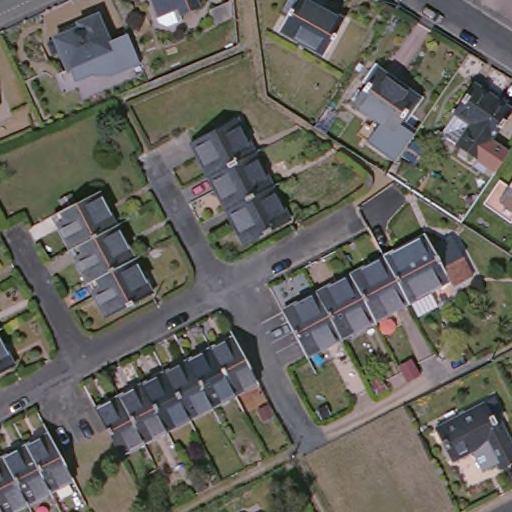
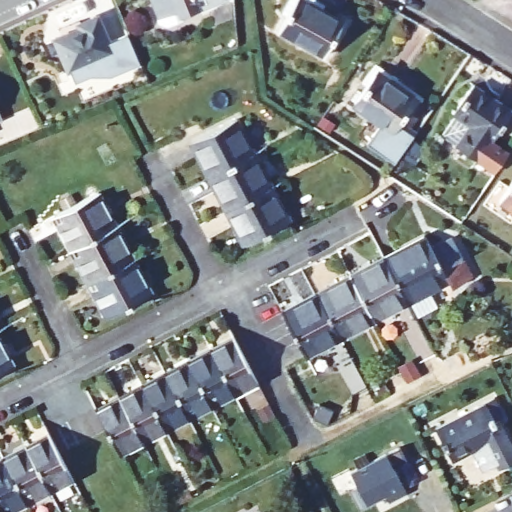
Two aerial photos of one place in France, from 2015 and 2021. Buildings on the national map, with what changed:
unchanged [(188,17),(190,25),(184,28),(175,31),(165,25),(164,20),(167,19),(159,0),(202,0),(206,11),(188,17)]
unchanged [(327,58),(281,33),(300,0),(303,0),(345,24),(327,58)]
unchanged [(114,54),(87,66),(90,74),(75,81),(62,53),(55,57),(50,46),(84,30),(82,26),(99,20),(114,54)]
unchanged [(418,102),(395,134),(357,107),(380,74),(418,102)]
unchanged [(490,143),(487,144),(473,163),(453,149),(466,130),(450,118),(470,88),(509,114),(490,143)]
unchanged [(239,124),(291,225),(254,245),(242,225),(235,227),(229,214),(235,211),(225,192),(218,195),(212,180),(217,177),(207,158),(200,161),(194,147),(239,124)]
unchanged [(502,204),(512,190),(512,212),(502,204)]
unchanged [(101,197),(152,298),(114,318),(104,298),(97,300),(90,286),(96,283),(86,266),(81,268),(73,253),(79,250),(68,232),(63,234),(56,220),(101,197)]
unchanged [(404,249),(407,256),(435,242),(455,279),(437,290),(445,304),(427,314),(419,300),(313,356),(305,341),(290,310),(404,249)]
unchanged [(121,448),(114,435),(102,412),(240,341),(257,377),(121,448)]
unchanged [(0,377),(0,342),(14,370),(0,377)]
unchanged [(494,420),(500,418),(512,443),(512,462),(500,468),(498,463),(485,470),(475,450),(454,460),(437,426),(485,402),(494,420)]
unchanged [(61,460),(69,474),(0,510),(0,464),(50,438),(52,443),(61,460)]
new [(398,446),(405,460),(391,466),(405,492),(386,501),(383,494),(360,506),(351,488),(356,486),(349,471),(398,446)]

